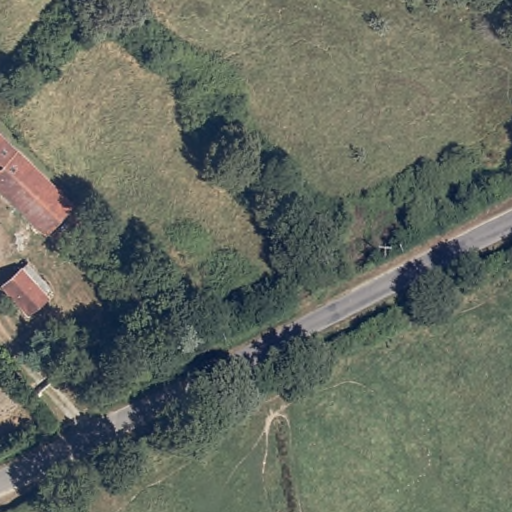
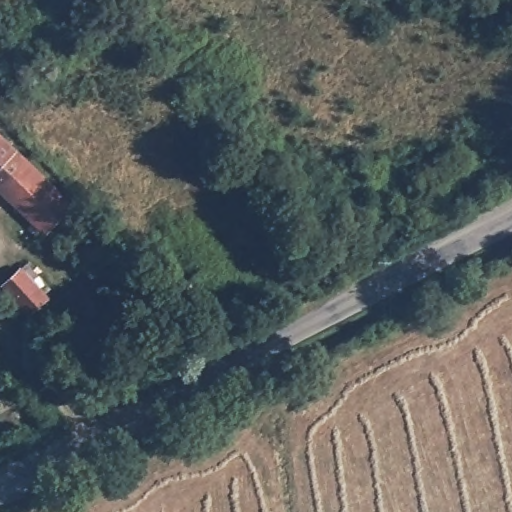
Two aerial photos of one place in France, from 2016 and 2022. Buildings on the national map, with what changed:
unchanged [(52,236),(0,189),(0,140),(76,209),(52,236)]
unchanged [(6,287),(26,272),(56,301),(37,319),(6,287)]

